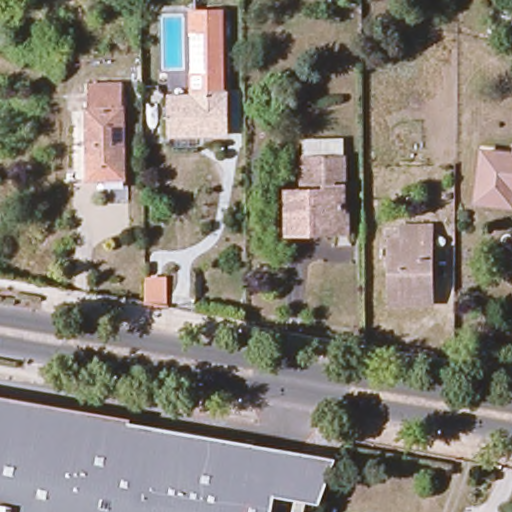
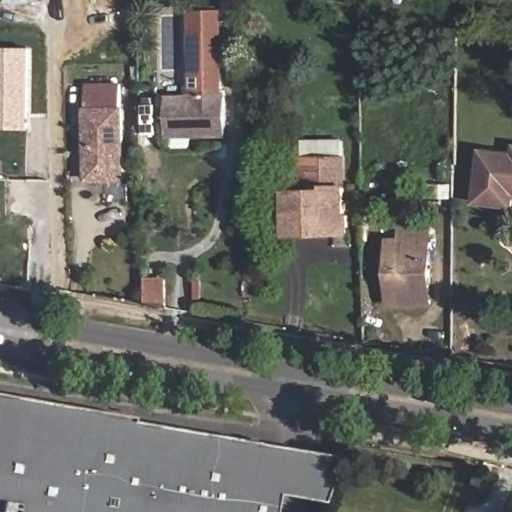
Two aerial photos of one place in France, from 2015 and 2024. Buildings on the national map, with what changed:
unchanged [(170,101),(191,101),(191,18),(218,18),(218,74),(223,75),(223,101),(225,101),(225,140),(192,139),(169,139),(170,101)]
new [(29,47),(28,129),(0,129),(0,47),(29,47)]
unchanged [(119,184),(84,183),(83,90),(118,90),(119,184)]
unchanged [(509,215),(474,210),(480,162),(512,167),(512,201),(511,201),(509,215)]
unchanged [(347,237),(336,237),(287,236),(287,195),(326,196),(326,192),(311,191),(312,165),(345,165),(343,221),(347,221),(347,237)]
unchanged [(429,304),(387,303),(389,239),(401,239),(401,226),(430,227),(429,304)]
unchanged [(145,303),(145,283),(162,285),(160,306),(145,303)]
unchanged [(253,444),(240,512),(0,512),(0,397),(253,444)]
unchanged [(319,506),(273,497),(271,512),(240,512),(253,444),(336,459),(319,506)]

